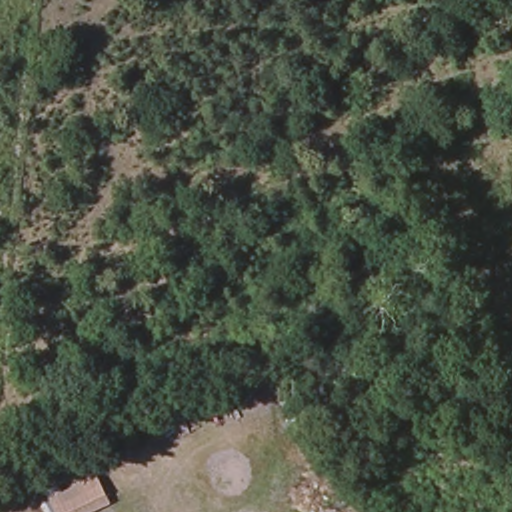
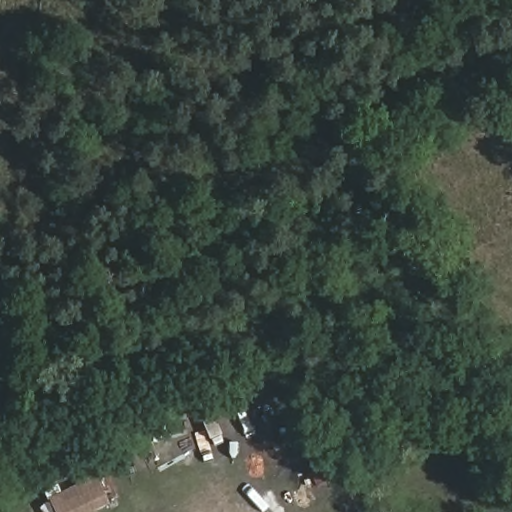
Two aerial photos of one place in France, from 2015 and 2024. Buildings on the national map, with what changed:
unchanged [(95,512),(57,512),(45,490),(91,467),(111,504),(95,512)]

